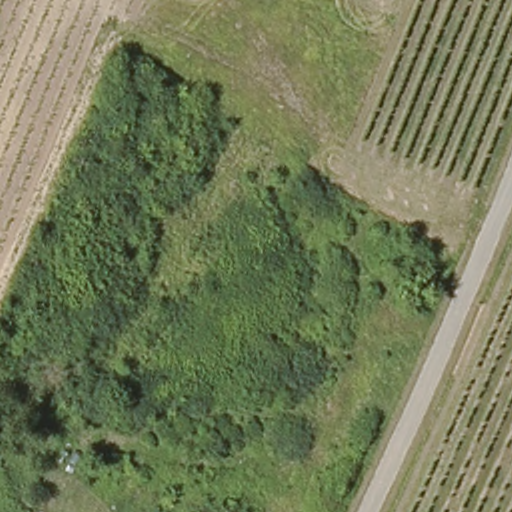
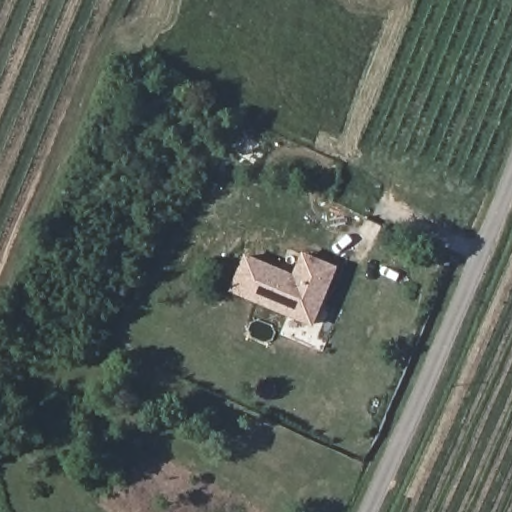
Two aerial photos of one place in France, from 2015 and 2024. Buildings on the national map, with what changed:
new [(290,276),(300,254),(332,267),(309,323),(229,290),(243,256),(290,276)]

